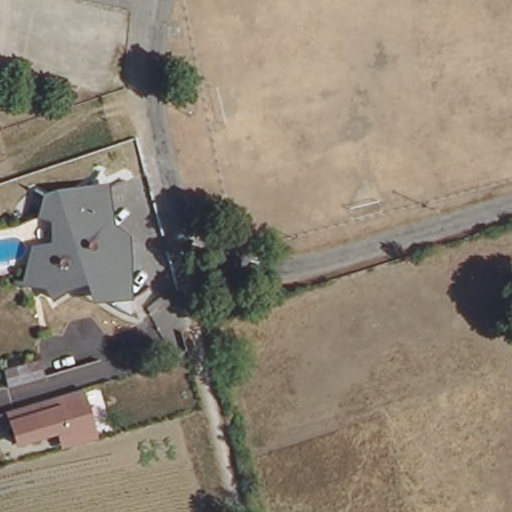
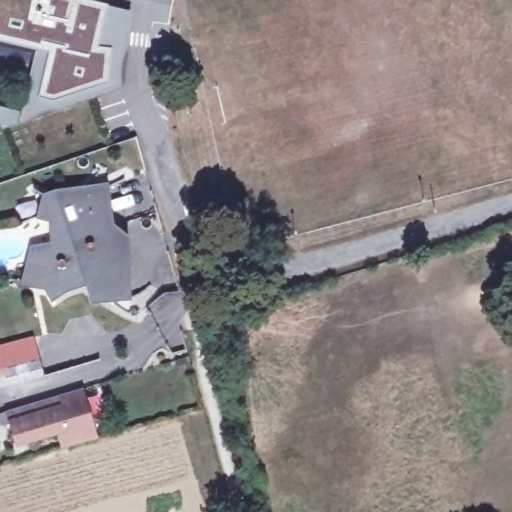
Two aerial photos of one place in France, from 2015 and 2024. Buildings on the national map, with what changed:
new [(130,13),(131,30),(122,30),(124,21),(107,17),(100,47),(113,48),(110,83),(56,101),(40,98),(49,53),(37,50),(0,41),(0,0),(80,0),(130,13)]
new [(37,50),(49,53),(40,98),(56,101),(110,83),(113,48),(100,47),(107,17),(124,21),(122,30),(131,30),(125,87),(23,122),(5,128),(0,114),(0,105),(25,111),(37,50)]
unchanged [(45,298),(40,287),(30,285),(31,269),(25,270),(27,263),(31,245),(55,238),(51,223),(45,217),(36,193),(48,199),(62,196),(72,192),(73,200),(88,189),(109,241),(116,240),(121,261),(116,261),(118,314),(111,312),(98,301),(86,287),(82,289),(78,285),(59,290),(45,298)]
new [(34,335),(41,359),(2,370),(6,382),(0,382),(0,344),(34,335)]
unchanged [(60,450),(57,437),(14,450),(0,413),(85,387),(99,438),(60,450)]

